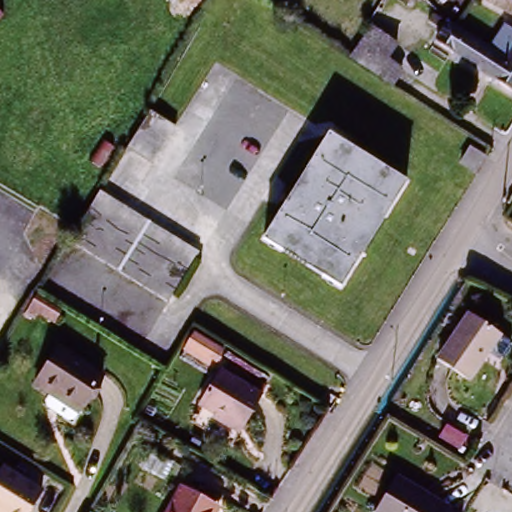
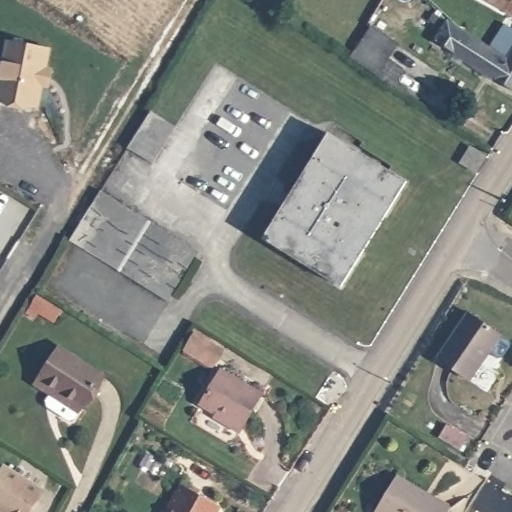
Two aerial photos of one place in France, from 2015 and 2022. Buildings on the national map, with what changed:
unchanged [(509,0),(512,2),(512,19),(479,0),(509,0)]
unchanged [(512,63),(512,91),(436,42),(443,31),(425,19),(430,11),(448,23),(459,29),(505,59),(512,63)]
unchanged [(490,46),(503,25),(512,30),(512,63),(505,59),(507,56),(490,46)]
unchanged [(387,82),(352,59),(369,32),(389,46),(381,59),(395,69),(387,82)]
new [(51,49),(48,69),(53,70),(50,91),(43,90),(40,109),(26,114),(8,111),(0,104),(0,72),(6,41),(51,49)]
unchanged [(150,169),(126,154),(150,116),(173,131),(150,169)]
unchanged [(329,133),(406,181),(340,286),(263,238),(329,133)]
unchanged [(477,172),(463,163),(472,148),(486,157),(477,172)]
unchanged [(166,302),(68,241),(77,226),(100,191),(197,252),(166,302)]
unchanged [(502,336),(470,382),(440,361),(471,316),(502,336)]
unchanged [(60,347),(103,375),(75,418),(70,420),(48,407),(47,401),(52,394),(37,384),(60,347)]
unchanged [(242,433),(200,408),(221,374),(262,399),(242,433)]
unchanged [(43,491),(30,512),(0,512),(0,471),(5,464),(43,491)]
unchanged [(377,511),(398,476),(450,508),(448,512),(378,512),(377,511)]
unchanged [(215,512),(166,512),(180,487),(213,504),(218,507),(215,512)]

